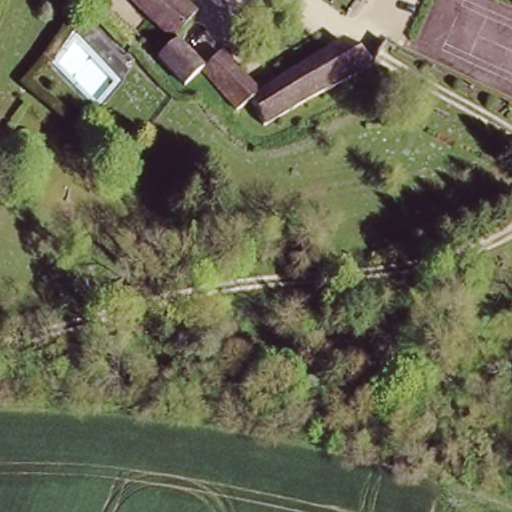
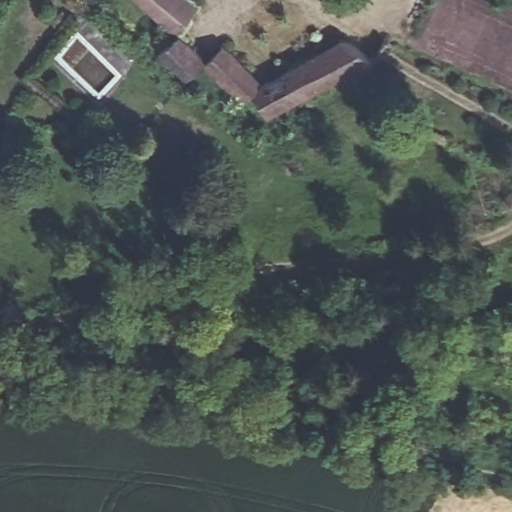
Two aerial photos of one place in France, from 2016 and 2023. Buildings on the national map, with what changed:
unchanged [(136,0),(183,0),(190,5),(168,32),(136,0)]
unchanged [(178,75),(152,47),(168,32),(195,60),(178,75)]
unchanged [(253,85),(335,37),(364,58),(365,59),(256,115),(242,92),(229,98),(195,60),(217,42),(253,85)]

